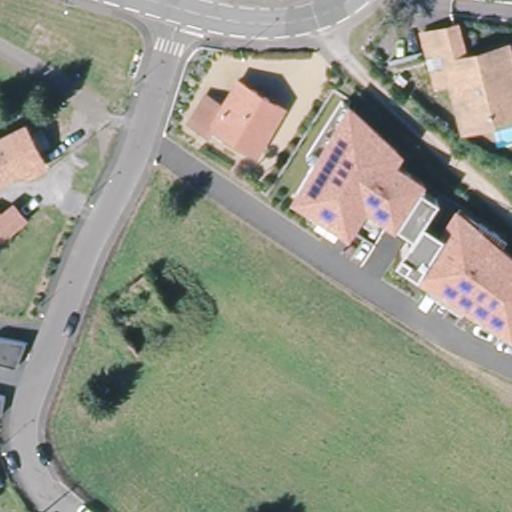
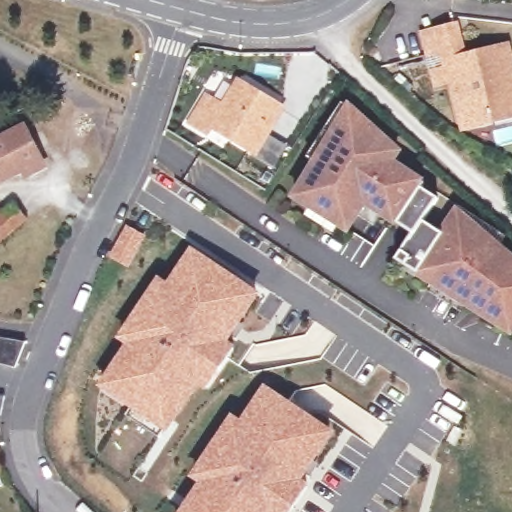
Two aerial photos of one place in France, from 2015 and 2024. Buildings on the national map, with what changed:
unchanged [(465,126),(461,108),(454,77),(436,81),(432,66),(425,31),(457,25),(463,55),(511,45),(512,48),(512,115),(465,126)]
unchanged [(215,126),(210,133),(194,123),(208,98),(225,108),(241,80),(285,106),(258,151),(215,126)]
unchanged [(511,341),(505,337),(396,268),(408,250),(379,231),(360,219),(348,238),(296,205),(317,171),(308,165),(343,111),(352,117),(400,161),(393,171),(411,183),(426,192),(462,216),(508,246),(502,257),(512,266),(512,341),(511,341)]
unchanged [(32,173),(27,164),(0,179),(0,140),(25,127),(46,165),(32,173)]
unchanged [(17,227),(0,239),(0,205),(1,204),(17,227)]
new [(262,293),(230,341),(237,346),(206,391),(200,385),(167,430),(96,385),(126,344),(116,337),(159,274),(169,281),(192,246),(262,293)]
unchanged [(29,346),(19,372),(0,367),(0,341),(2,341),(29,346)]
new [(335,433),(303,479),(310,484),(292,512),(177,512),(200,481),(190,474),(232,413),(240,419),(265,384),(335,433)]
unchanged [(4,419),(0,418),(0,398),(8,400),(4,419)]

